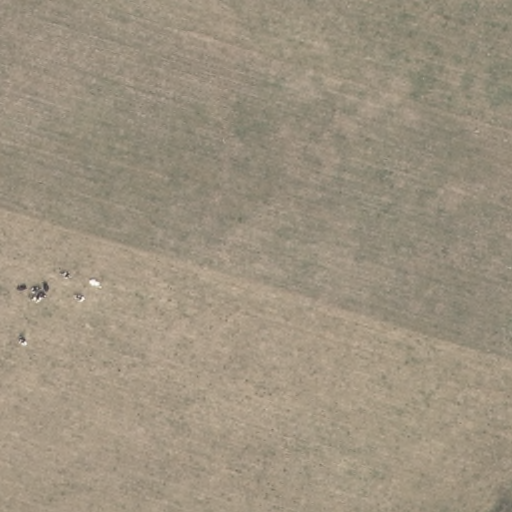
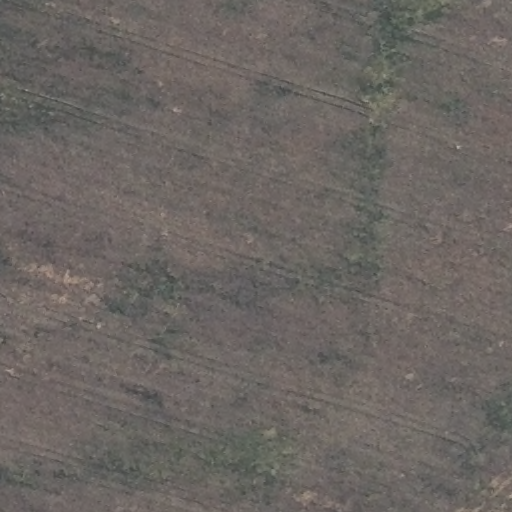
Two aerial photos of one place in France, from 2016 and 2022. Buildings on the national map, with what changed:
[]

